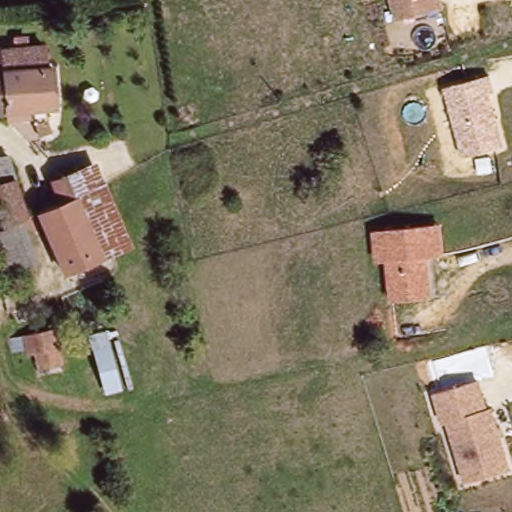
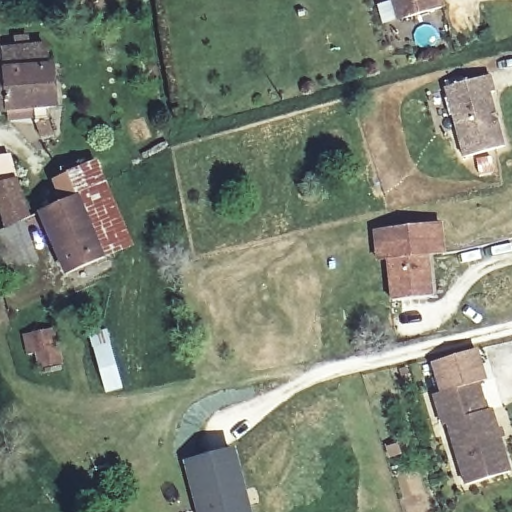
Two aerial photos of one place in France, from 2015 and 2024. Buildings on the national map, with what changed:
unchanged [(445,0),(447,5),(408,17),(401,19),(399,8),(396,0),(445,0)]
unchanged [(39,112),(17,115),(9,59),(45,55),(47,69),(55,68),(62,107),(52,108),(64,137),(45,141),(39,112)]
unchanged [(17,115),(0,116),(0,60),(9,59),(17,115)]
unchanged [(495,90),(490,92),(503,145),(462,157),(444,87),(490,75),(495,90)]
unchanged [(6,227),(0,209),(0,157),(10,154),(15,171),(30,220),(20,222),(6,227)]
unchanged [(88,264),(60,273),(41,213),(60,206),(52,182),(80,173),(99,166),(107,189),(129,252),(88,264)]
unchanged [(32,266),(0,276),(0,229),(6,227),(20,222),(32,266)]
unchanged [(382,228),(427,223),(437,222),(442,253),(431,254),(435,295),(430,295),(390,300),(382,228)]
new [(110,331),(125,386),(110,391),(94,335),(110,331)]
new [(431,361),(480,347),(489,378),(481,380),(440,392),(431,361)]
unchanged [(442,424),(435,393),(481,380),(490,408),(493,407),(497,423),(502,422),(507,438),(502,440),(512,469),(466,483),(450,423),(442,424)]
new [(252,512),(195,512),(182,461),(235,447),(252,512)]

